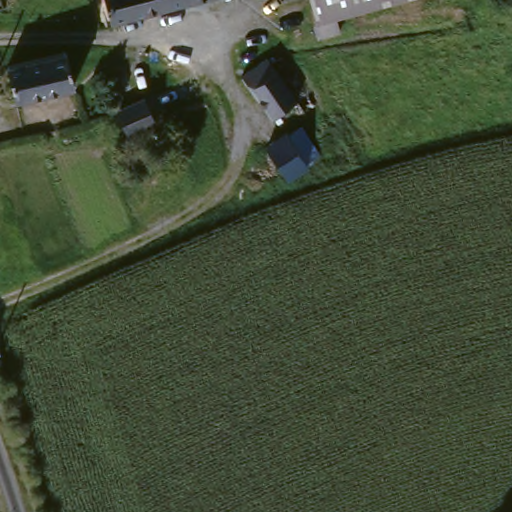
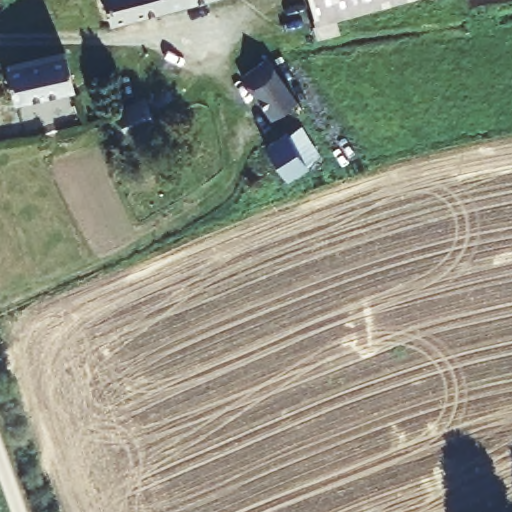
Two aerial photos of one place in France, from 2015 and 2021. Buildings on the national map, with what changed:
unchanged [(103,0),(168,0),(170,9),(111,25),(103,0)]
unchanged [(168,0),(200,0),(170,9),(168,0)]
unchanged [(337,33),(320,38),(310,0),(400,0),(335,18),(337,33)]
unchanged [(74,86),(14,100),(6,65),(65,52),(74,86)]
unchanged [(304,122),(280,140),(240,88),(266,69),(304,122)]
unchanged [(155,123),(127,136),(115,112),(144,99),(155,123)]
unchanged [(286,143),(288,144),(299,136),(317,165),(306,174),(307,175),(289,189),(287,189),(266,157),(283,144),(286,143)]

